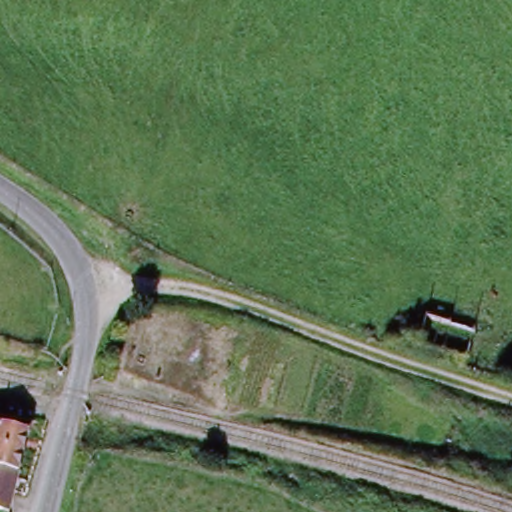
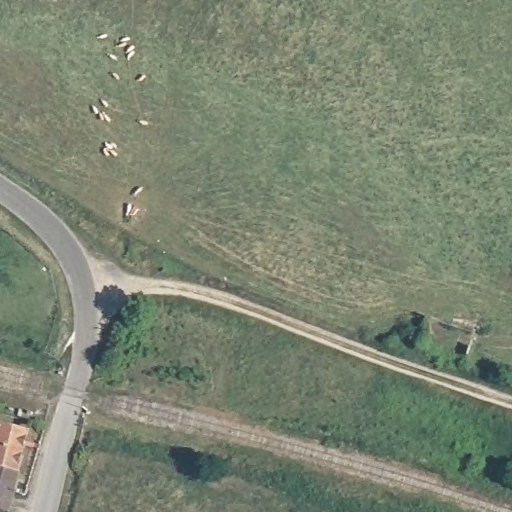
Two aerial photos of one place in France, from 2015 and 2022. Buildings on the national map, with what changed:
unchanged [(29,428),(12,499),(8,511),(0,509),(0,421),(29,428)]

